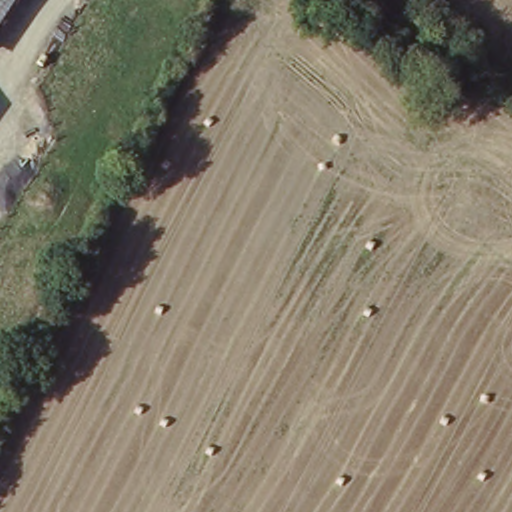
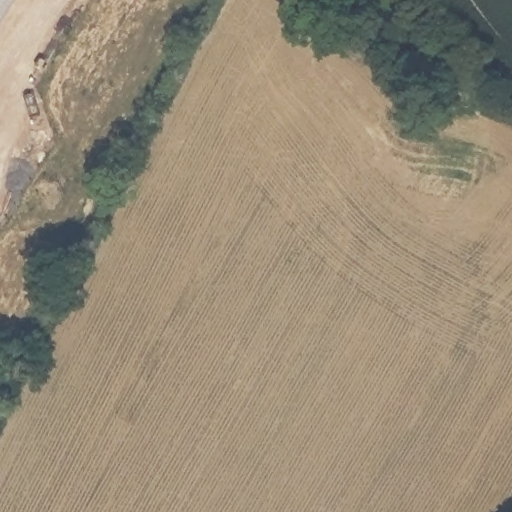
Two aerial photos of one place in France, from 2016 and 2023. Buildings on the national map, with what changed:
unchanged [(0,0),(21,0),(0,31),(0,0)]

